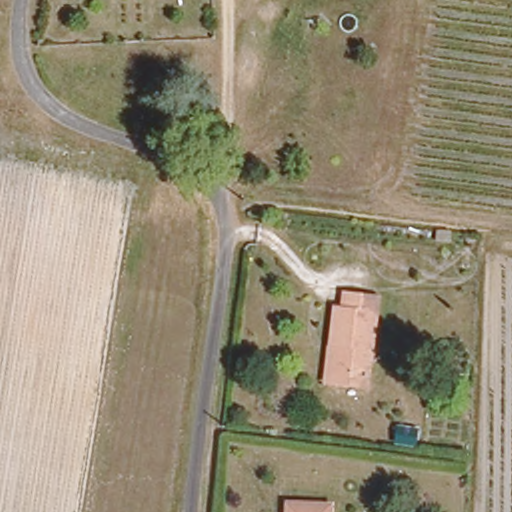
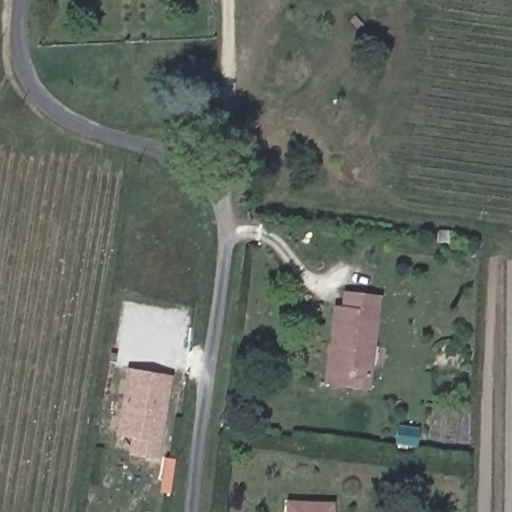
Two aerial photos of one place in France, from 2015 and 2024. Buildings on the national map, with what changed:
unchanged [(331,341),(335,303),(345,304),(346,291),(379,295),(369,387),(335,383),(326,381),(331,341)]
new [(172,375),(158,459),(128,454),(130,437),(116,435),(128,369),(172,375)]
unchanged [(331,499),(331,512),(284,512),(285,498),(331,499)]

